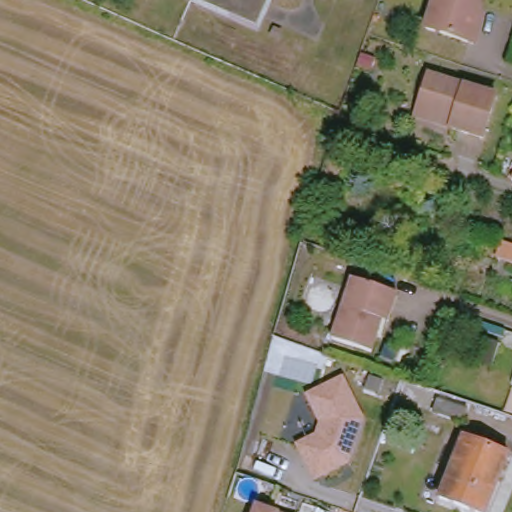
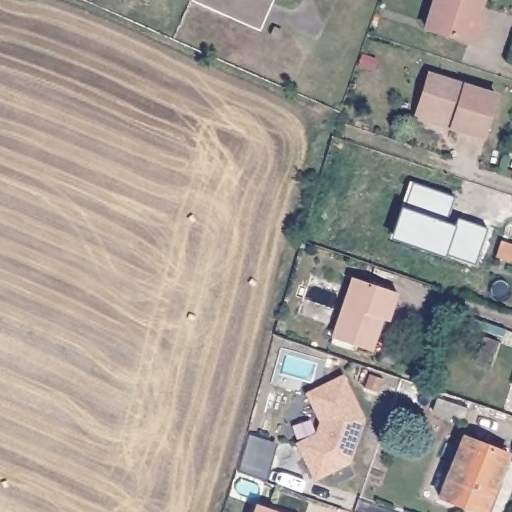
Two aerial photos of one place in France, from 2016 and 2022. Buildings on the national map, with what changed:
unchanged [(196,0),(275,0),(260,33),(195,4),(196,0)]
unchanged [(442,0),(487,0),(472,46),(431,34),(442,0)]
unchanged [(451,130),(453,123),(418,110),(430,77),(497,100),(483,141),(451,130)]
new [(411,180),(450,193),(442,219),(453,223),(455,218),(486,228),(475,264),(393,236),(411,180)]
unchanged [(512,263),(495,257),(501,241),(512,244),(512,263)]
unchanged [(333,338),(353,278),(397,292),(387,321),(382,319),(371,351),(333,338)]
unchanged [(297,443),(306,439),(316,434),(321,421),(312,402),(308,393),(322,386),(343,377),(363,419),(347,462),(323,474),(314,478),(297,443)]
unchanged [(432,413),(437,399),(467,410),(463,423),(432,413)]
unchanged [(469,443),(512,460),(512,463),(497,503),(493,501),(488,512),(470,512),(445,502),(469,443)]
unchanged [(284,512),(251,512),(255,501),(284,512)]

